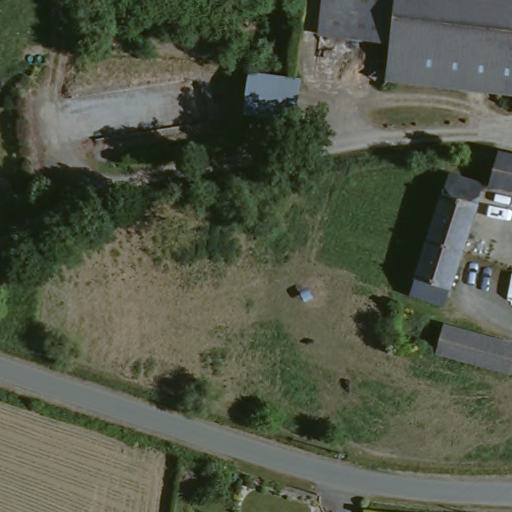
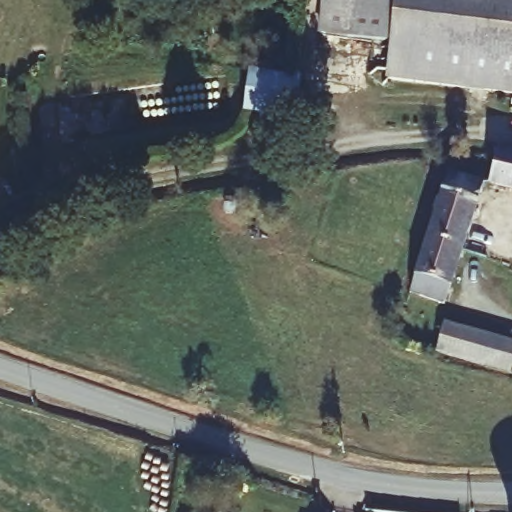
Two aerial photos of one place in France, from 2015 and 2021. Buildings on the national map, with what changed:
unchanged [(346,43),(312,39),(317,0),(350,0),(346,41),(346,43)]
unchanged [(346,41),(350,0),(457,0),(507,6),(512,6),(512,61),(385,47),(346,43),(346,41)]
unchanged [(457,0),(512,0),(512,6),(507,6),(457,0)]
unchanged [(295,83),(290,123),(239,116),(245,74),(295,83)]
unchanged [(486,156),(512,161),(512,195),(481,190),(486,156)]
unchanged [(424,241),(446,178),(481,190),(459,252),(424,241)]
unchanged [(441,309),(407,297),(424,241),(459,252),(441,309)]
unchanged [(512,352),(512,367),(508,378),(432,356),(440,330),(512,352)]

